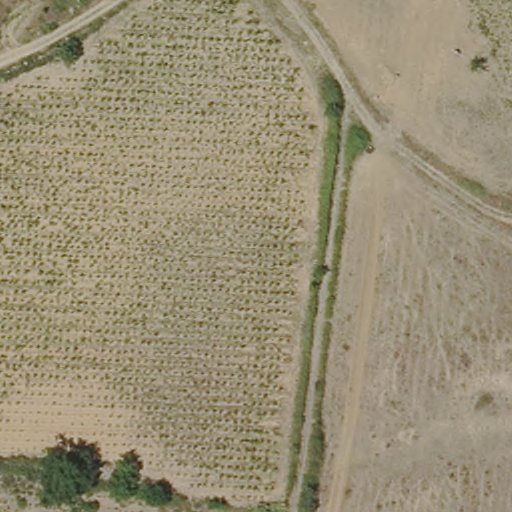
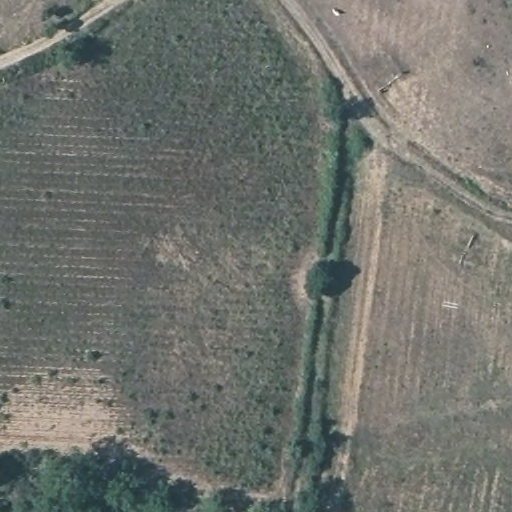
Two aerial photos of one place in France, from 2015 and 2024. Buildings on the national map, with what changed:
[]

